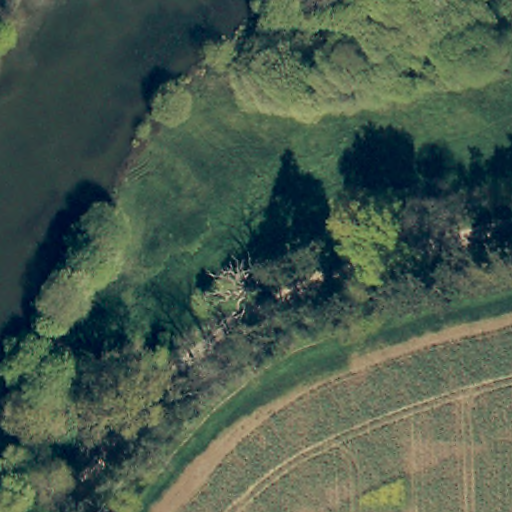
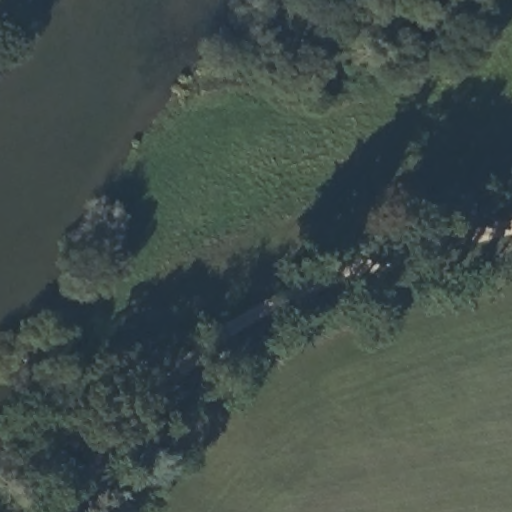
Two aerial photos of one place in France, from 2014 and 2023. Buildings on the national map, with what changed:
[]

